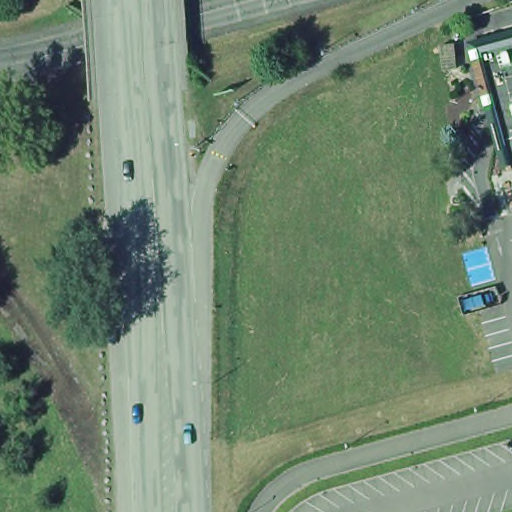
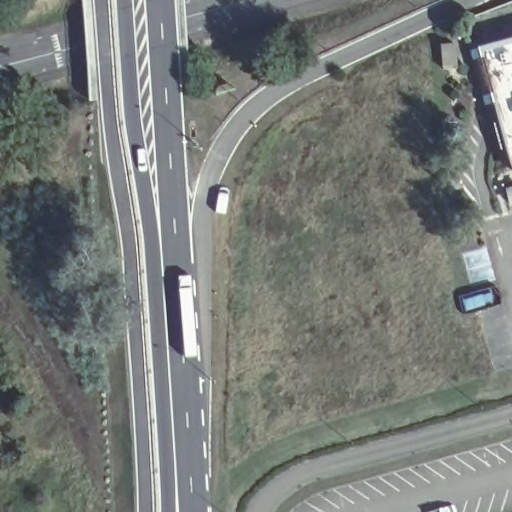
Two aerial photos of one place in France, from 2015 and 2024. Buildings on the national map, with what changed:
unchanged [(512,147),(505,150),(478,51),(512,42),(512,147)]

